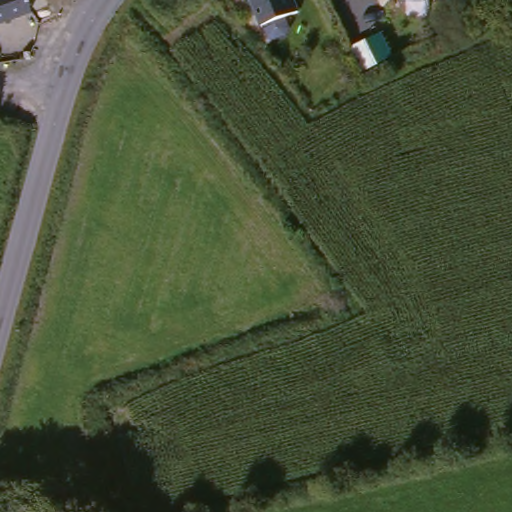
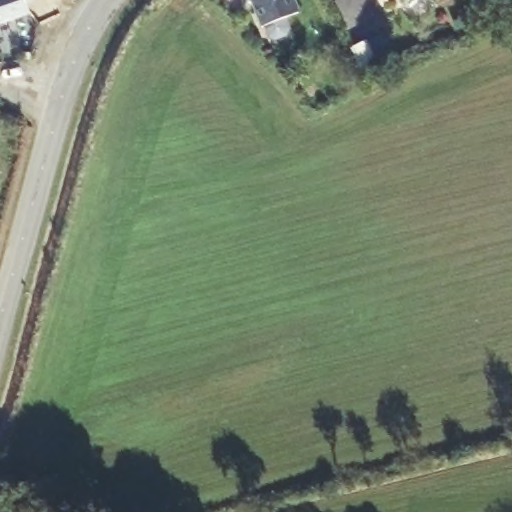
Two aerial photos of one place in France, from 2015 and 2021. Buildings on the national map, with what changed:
unchanged [(24,0),(29,15),(0,26),(0,0),(24,0)]
unchanged [(272,22),(259,0),(257,0),(304,0),(306,3),(272,22)]

